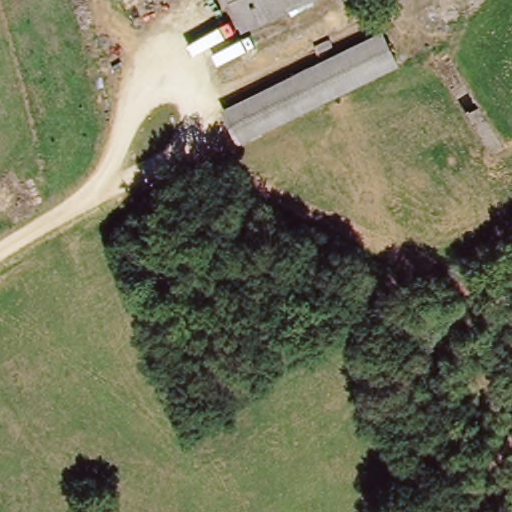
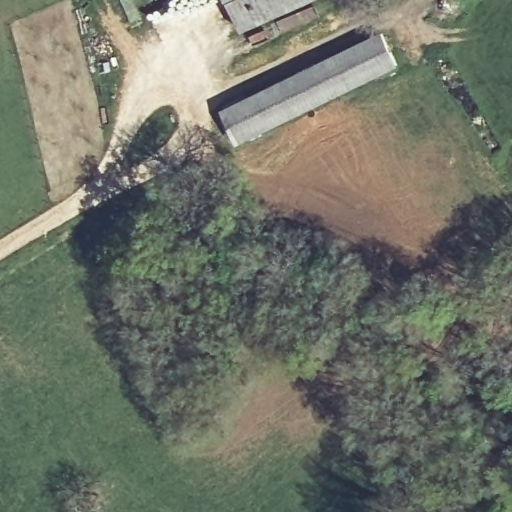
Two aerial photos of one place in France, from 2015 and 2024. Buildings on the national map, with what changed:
unchanged [(268,0),(275,15),(247,29),(233,0),(268,0)]
unchanged [(268,0),(308,0),(275,15),(268,0)]
unchanged [(220,116),(295,77),(377,34),(391,59),(395,65),(310,107),(235,145),(220,116)]

